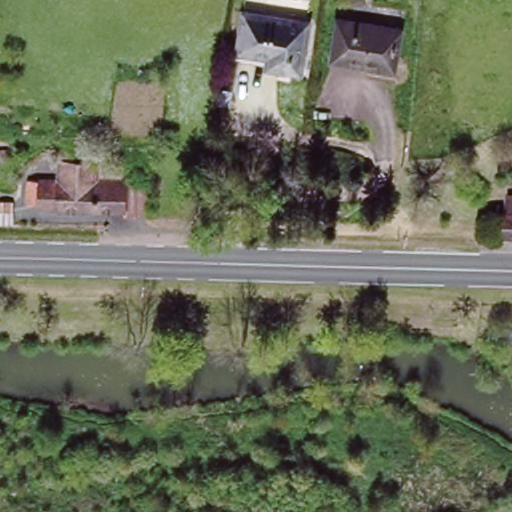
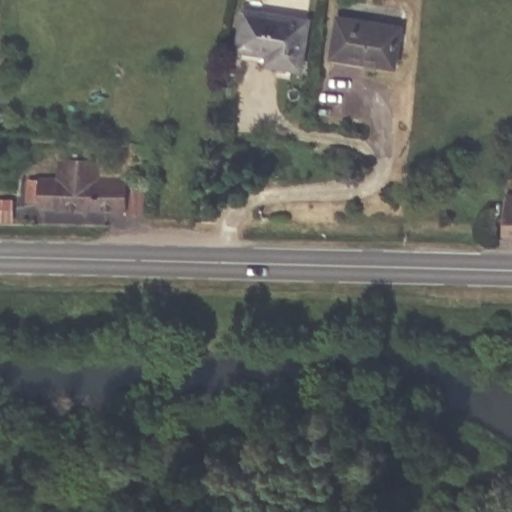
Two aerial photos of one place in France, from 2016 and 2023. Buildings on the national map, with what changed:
unchanged [(279,64),(267,61),(268,53),(237,46),(243,9),(286,16),(279,64)]
unchanged [(397,65),(346,57),(331,54),(337,14),(351,16),(403,25),(397,65)]
unchanged [(300,67),(279,64),(286,16),(308,19),(300,67)]
unchanged [(97,156),(97,173),(132,174),(130,206),(40,203),(40,199),(30,198),(30,175),(60,177),(61,155),(97,156)]
unchanged [(0,218),(0,196),(14,196),(13,218),(0,218)]
unchanged [(505,197),(512,197),(512,233),(506,233),(505,197)]

